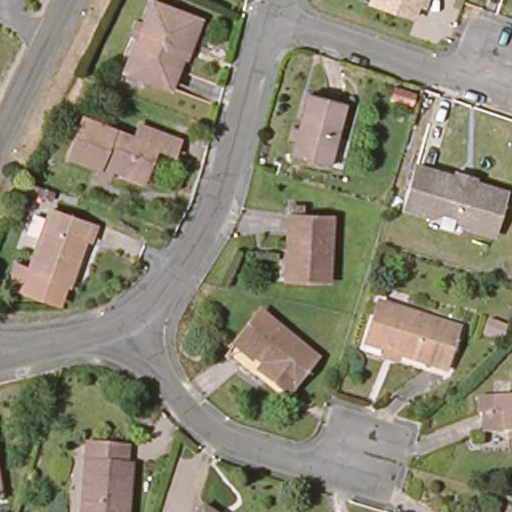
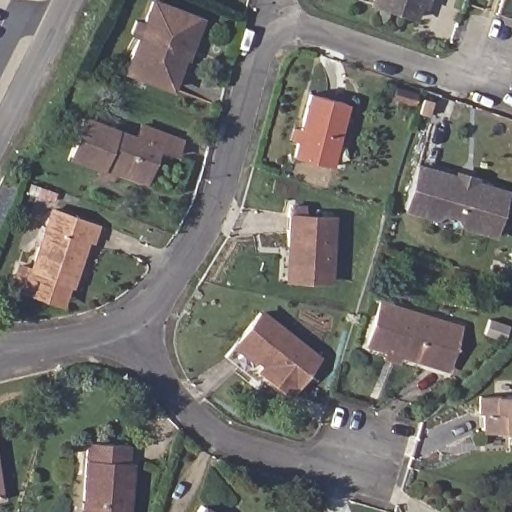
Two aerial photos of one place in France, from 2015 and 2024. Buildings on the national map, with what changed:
unchanged [(378,0),(422,0),(417,15),(378,0)]
unchanged [(128,69),(157,1),(199,18),(205,21),(192,57),(186,54),(173,88),(128,69)]
unchanged [(295,128),(303,130),(312,95),(348,105),(331,167),(295,157),(299,142),(290,140),(295,128)]
unchanged [(111,167),(106,175),(68,158),(86,121),(134,140),(142,123),(182,140),(174,157),(162,151),(147,182),(111,167)]
unchanged [(464,175),(466,180),(475,182),(478,180),(511,190),(498,234),(466,223),(465,215),(446,209),(440,214),(411,206),(425,162),(464,175)]
unchanged [(101,230),(95,246),(88,244),(72,286),(58,281),(51,300),(13,285),(20,265),(31,269),(54,210),(101,230)]
unchanged [(290,221),(334,224),(331,286),(292,283),(293,254),(289,254),(290,221)]
unchanged [(385,359),(388,354),(368,347),(384,302),(464,330),(448,375),(403,360),(401,365),(385,359)]
unchanged [(230,353),(263,315),(319,363),(290,397),(260,372),(268,362),(258,353),(244,365),(230,353)]
unchanged [(507,433),(485,432),(485,416),(479,416),(480,396),(512,398),(512,445),(507,444),(507,433)]
unchanged [(129,446),(129,466),(133,466),(133,512),(82,512),(83,445),(129,446)]
unchanged [(0,501),(0,483),(1,501),(0,501)]
unchanged [(213,512),(202,512),(205,507),(213,512)]

